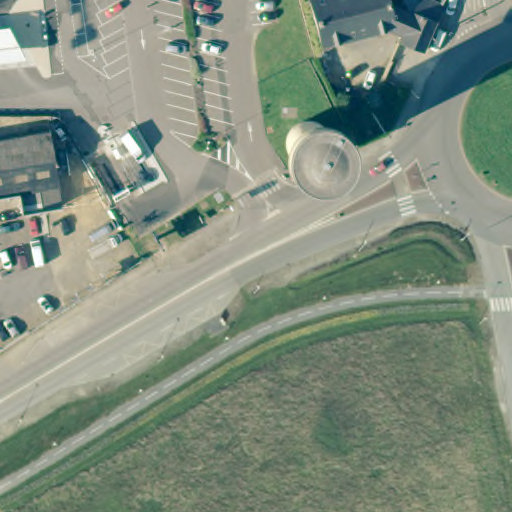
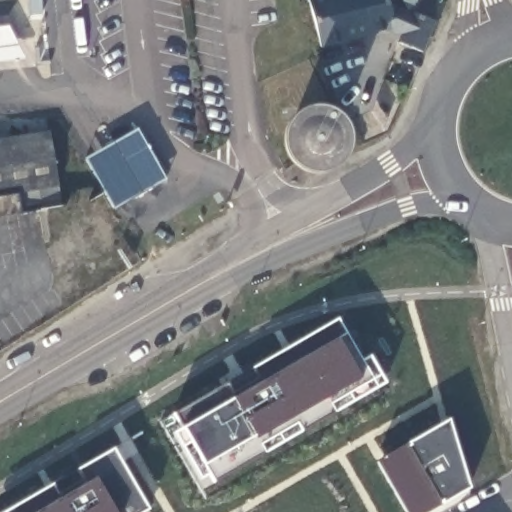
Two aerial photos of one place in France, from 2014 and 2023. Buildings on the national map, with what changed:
unchanged [(311,9),(308,0),(391,0),(396,27),(368,34),(319,45),(312,17),(311,9)]
unchanged [(413,12),(419,0),(423,0),(442,9),(435,22),(422,54),(399,43),(413,12)]
unchanged [(0,62),(0,26),(8,25),(22,60),(0,62)]
unchanged [(328,50),(351,110),(342,115),(313,54),(328,50)]
unchanged [(21,191),(0,195),(0,141),(48,132),(62,209),(26,216),(21,191)]
new [(182,430),(173,413),(227,383),(232,392),(257,378),(253,369),(337,320),(371,378),(328,403),(333,412),(300,431),(296,423),(258,445),(263,454),(212,483),(207,474),(199,479),(174,434),(182,430)]
new [(469,486),(425,512),(406,512),(376,461),(448,420),(469,486)]
new [(144,509),(139,512),(0,512),(111,449),(144,509)]

